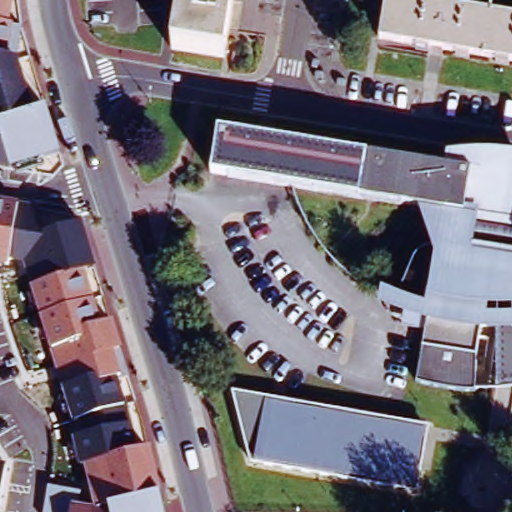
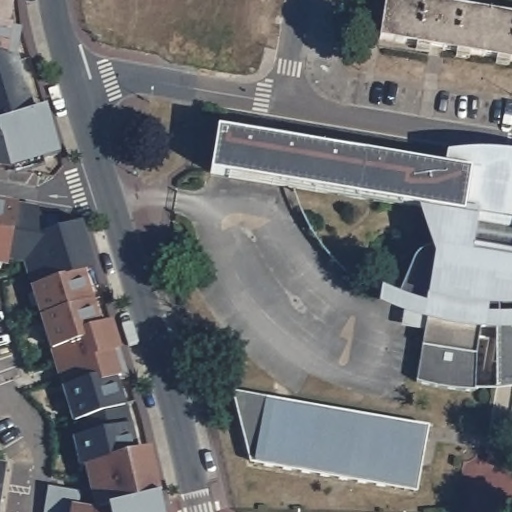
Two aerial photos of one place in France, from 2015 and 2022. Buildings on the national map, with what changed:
unchanged [(9,23),(20,26),(18,54),(35,110),(47,108),(61,155),(44,160),(47,167),(13,175),(12,171),(0,169),(0,0),(14,0),(9,23)]
demolished [(225,61),(172,53),(181,0),(234,0),(225,61)]
unchanged [(512,63),(380,41),(386,0),(396,0),(512,19),(512,63)]
unchanged [(478,156),(482,171),(512,162),(512,331),(505,332),(496,332),(487,332),(474,331),(469,358),(468,374),(467,390),(453,388),(436,386),(424,383),(417,381),(412,380),(422,322),(425,307),(395,296),(409,261),(412,256),(418,252),(426,249),(413,206),(283,184),(205,172),(213,127),(452,166),(478,156)]
unchanged [(52,224),(82,220),(95,268),(86,270),(100,323),(113,320),(125,378),(118,380),(137,450),(150,447),(164,512),(43,512),(47,486),(90,495),(84,465),(75,467),(70,439),(77,438),(63,388),(26,262),(8,259),(7,266),(0,265),(0,205),(54,215),(52,224)]
unchanged [(512,331),(512,379),(500,381),(496,332),(505,332),(512,331)]
unchanged [(417,492),(251,463),(233,392),(429,428),(417,492)]
unchanged [(5,464),(0,508),(0,463),(5,464)]

